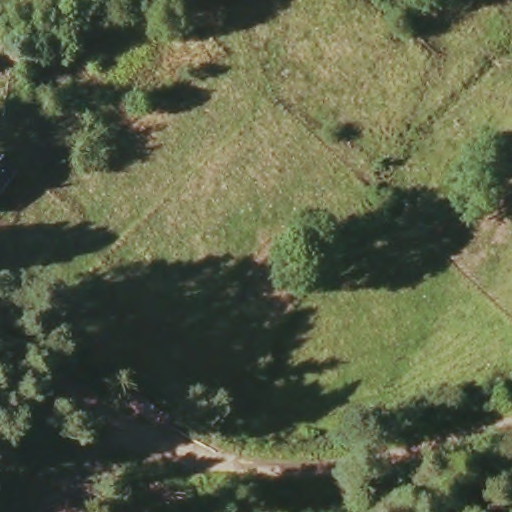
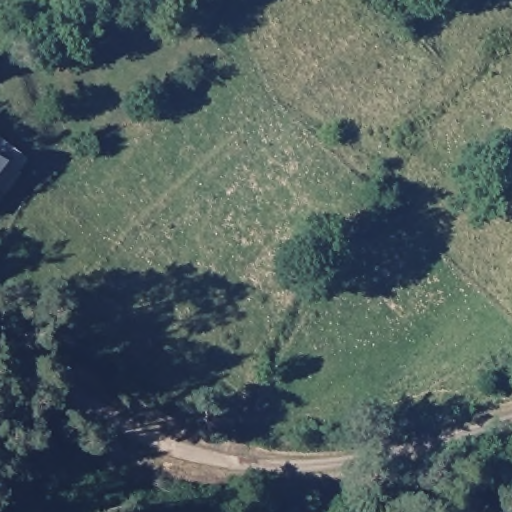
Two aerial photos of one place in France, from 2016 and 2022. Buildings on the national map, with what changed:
unchanged [(22,176),(0,208),(0,161),(22,176)]

